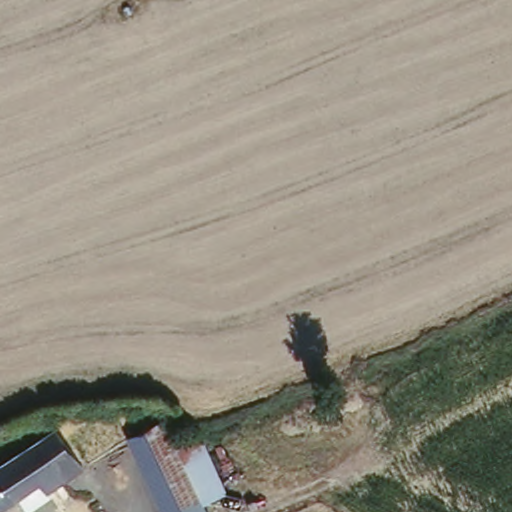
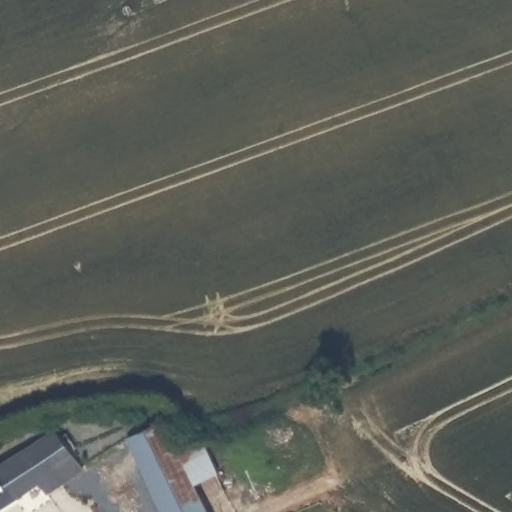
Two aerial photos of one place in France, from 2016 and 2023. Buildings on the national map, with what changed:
unchanged [(130,437),(164,421),(176,447),(203,502),(208,512),(165,512),(162,505),(130,437)]
unchanged [(48,492),(42,483),(0,510),(0,465),(55,430),(83,470),(48,492)]
unchanged [(176,447),(200,436),(226,492),(203,502),(176,447)]

